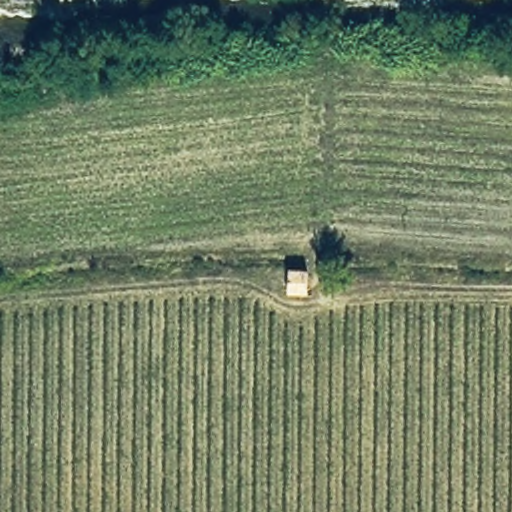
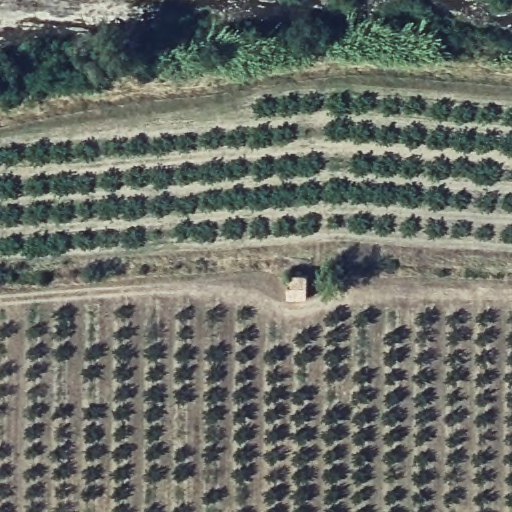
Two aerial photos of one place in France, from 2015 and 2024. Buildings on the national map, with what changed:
unchanged [(309,270),(309,299),(286,298),(288,270),(309,270)]

